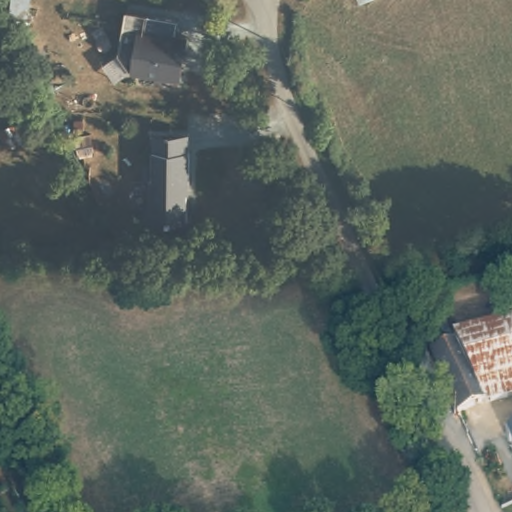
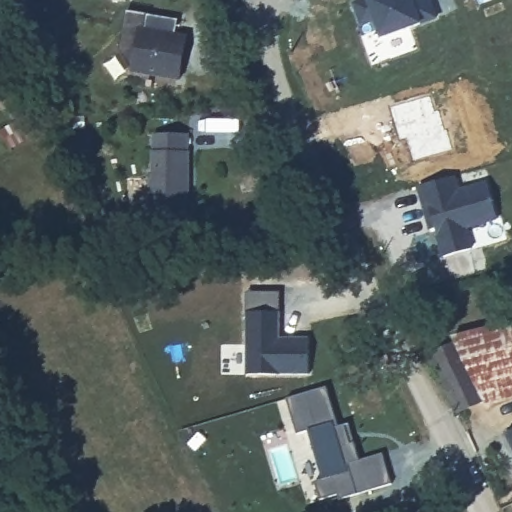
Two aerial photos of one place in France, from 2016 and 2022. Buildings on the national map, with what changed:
unchanged [(14,0),(31,0),(29,16),(12,14),(14,0)]
new [(361,0),(430,0),(436,15),(383,35),(377,19),(363,24),(355,2),(361,0)]
demolished [(357,0),(373,0),(358,4),(357,0)]
unchanged [(134,68),(120,50),(128,8),(150,12),(147,27),(188,35),(181,76),(134,68)]
unchanged [(25,120),(34,137),(9,152),(0,137),(0,134),(25,120)]
unchanged [(186,185),(186,225),(149,225),(149,182),(152,182),(152,154),(152,136),(190,136),(189,154),(189,185),(186,185)]
new [(418,185),(457,175),(460,187),(487,180),(497,219),(467,227),(472,250),(443,257),(436,227),(429,228),(418,185)]
new [(281,310),(280,337),(310,337),(310,374),(247,375),(247,311),(281,310)]
unchanged [(512,366),(472,379),(457,335),(456,331),(512,314),(512,366)]
unchanged [(472,379),(512,366),(512,395),(480,405),(477,397),(456,403),(429,345),(457,335),(472,379)]
new [(326,386),(339,424),(349,421),(361,458),(382,451),(392,482),(338,499),(338,494),(322,498),(317,483),(323,480),(311,430),(297,433),(287,398),(326,386)]
unchanged [(512,452),(505,436),(512,433),(512,452)]

